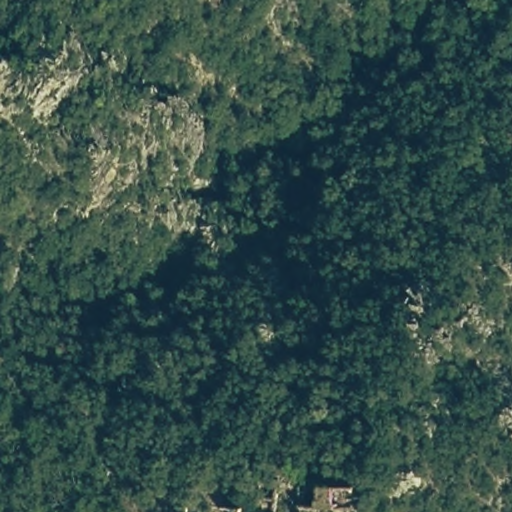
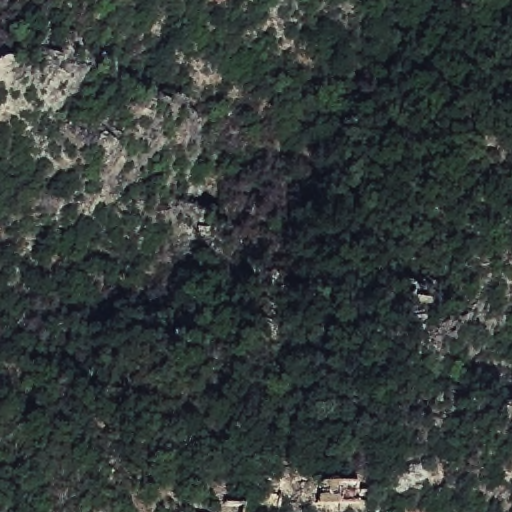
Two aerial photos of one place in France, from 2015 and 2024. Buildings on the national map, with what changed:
unchanged [(344,509),(321,508),(320,484),(361,485),(365,508),(344,509)]

